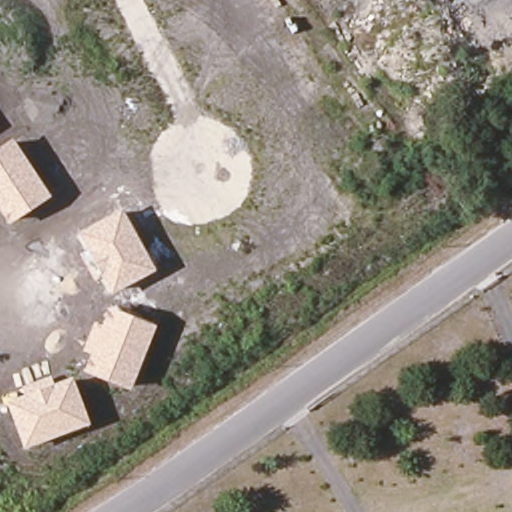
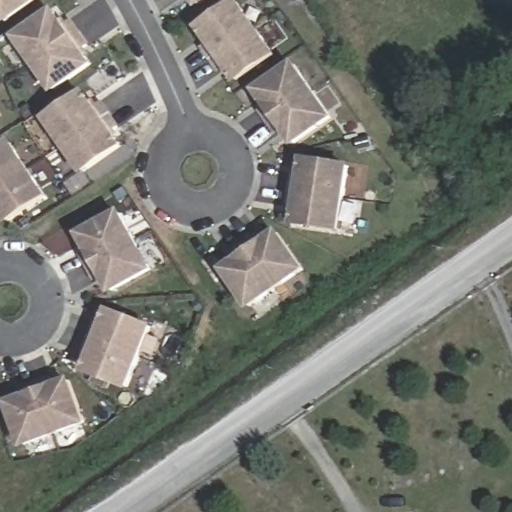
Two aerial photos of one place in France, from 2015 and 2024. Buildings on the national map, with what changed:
new [(5,25),(0,17),(0,0),(41,0),(5,25)]
new [(197,9),(192,0),(211,0),(197,9)]
new [(197,27),(235,0),(241,0),(278,55),(237,83),(228,69),(220,73),(202,47),(208,42),(197,27)]
new [(85,50),(95,64),(54,93),(15,36),(55,7),(65,22),(72,15),(92,43),(85,50)]
new [(254,89),(294,60),(335,117),(293,145),(284,133),(277,136),(258,109),(264,105),(254,89)]
new [(115,131),(125,145),(85,175),(45,119),(86,88),(97,103),(103,98),(121,125),(115,131)]
unchanged [(7,223),(0,213),(0,145),(12,137),(51,196),(7,223)]
new [(301,175),(303,157),(352,162),(343,232),(293,225),(295,206),(287,205),(292,174),(301,175)]
unchanged [(110,294),(102,279),(96,282),(82,255),(87,251),(77,235),(121,210),(154,270),(110,294)]
new [(264,239),(279,227),(308,269),(250,310),(221,268),(237,258),(233,249),(259,232),(264,239)]
unchanged [(129,388),(83,370),(89,354),(82,350),(92,323),(100,325),(108,307),(155,325),(129,388)]
unchanged [(88,424),(24,447),(5,402),(25,394),(22,389),(51,377),(53,383),(71,377),(88,424)]

